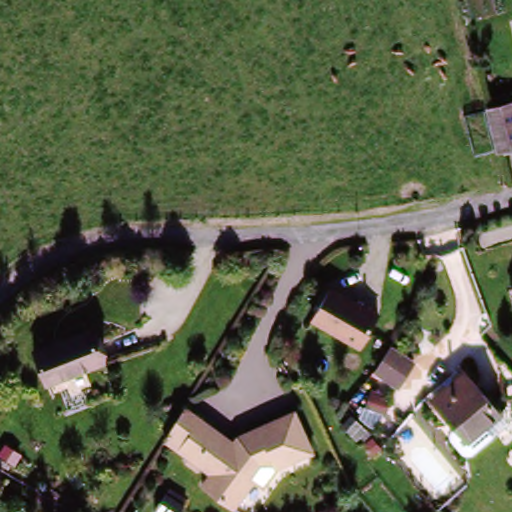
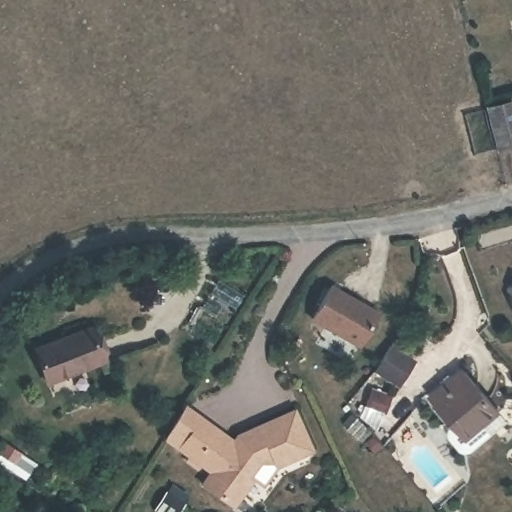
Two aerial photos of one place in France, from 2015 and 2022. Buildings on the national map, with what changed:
unchanged [(512,152),(502,156),(490,116),(512,109),(512,152)]
unchanged [(512,301),(505,279),(512,277),(512,301)]
unchanged [(380,315),(358,351),(308,322),(328,286),(380,315)]
unchanged [(99,328),(111,360),(56,381),(44,348),(99,328)]
unchanged [(456,431),(436,405),(473,378),(504,421),(483,437),(469,449),(456,431)]
unchanged [(188,404),(234,436),(299,411),(316,455),(283,469),(267,482),(257,475),(237,507),(200,486),(207,474),(165,440),(188,404)]

